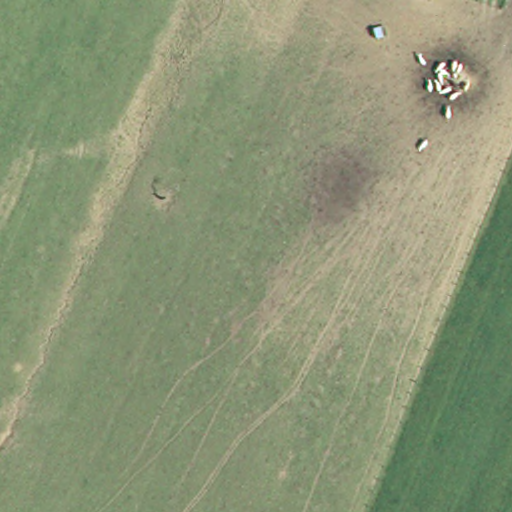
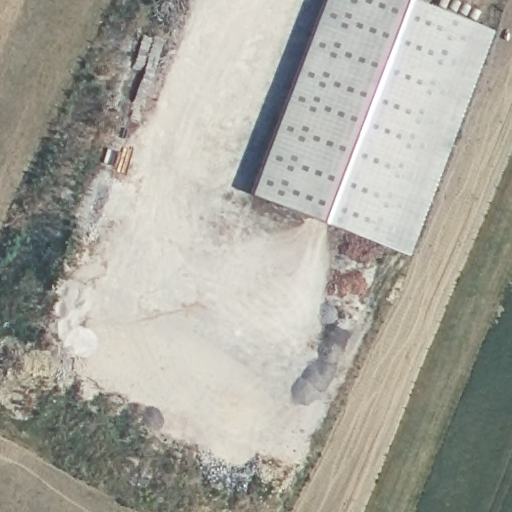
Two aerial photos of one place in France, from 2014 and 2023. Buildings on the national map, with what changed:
new [(493,30),(406,254),(247,194),(322,0),(414,0),(493,30)]

